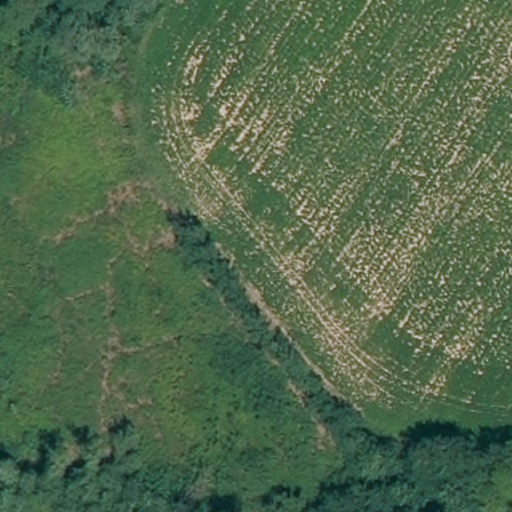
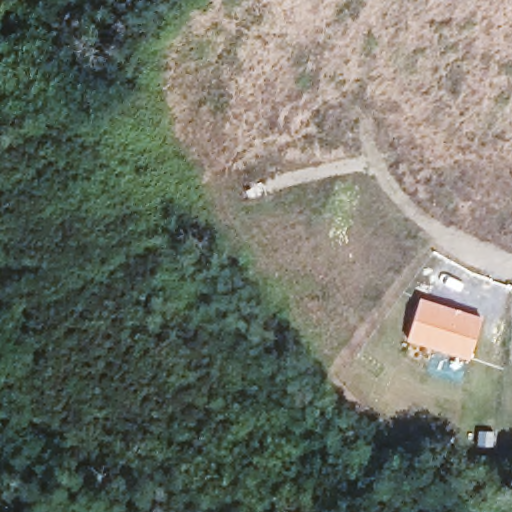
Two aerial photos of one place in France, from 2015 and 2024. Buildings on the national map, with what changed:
new [(420,296),(483,316),(469,358),(406,339),(420,296)]

